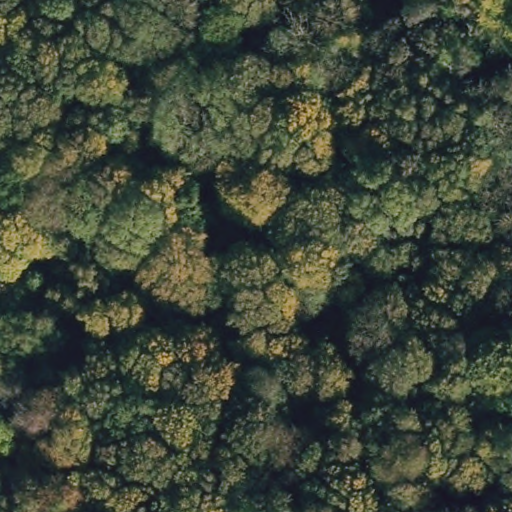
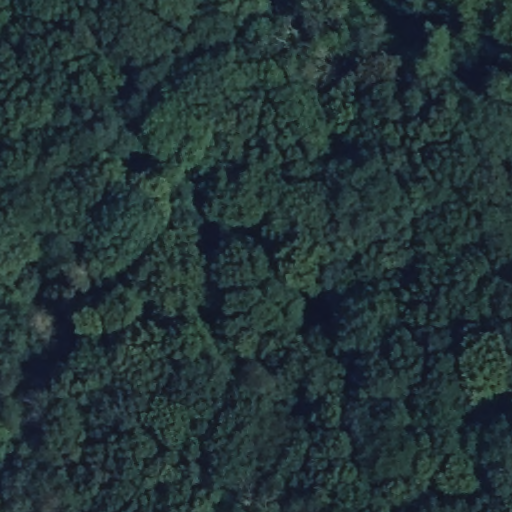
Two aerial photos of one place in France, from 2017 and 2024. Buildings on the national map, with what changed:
[]

